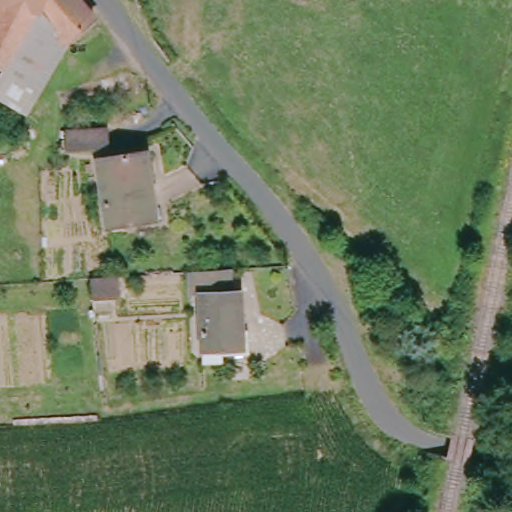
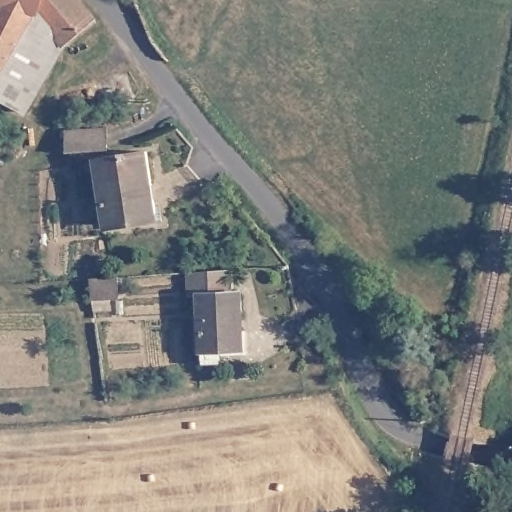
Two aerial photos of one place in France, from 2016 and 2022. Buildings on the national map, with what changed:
unchanged [(31,11),(0,65),(0,0),(74,0),(89,17),(57,41),(31,11)]
unchanged [(0,93),(0,65),(31,11),(57,41),(19,104),(0,93)]
unchanged [(106,160),(66,164),(64,142),(105,138),(106,160)]
unchanged [(152,230),(105,234),(99,170),(145,167),(152,230)]
unchanged [(87,277),(115,276),(116,294),(90,297),(87,277)]
unchanged [(225,297),(233,297),(238,350),(198,355),(193,301),(185,301),(183,286),(223,283),(225,297)]

